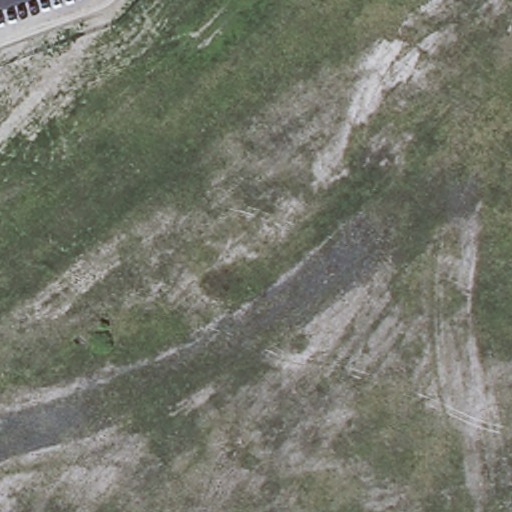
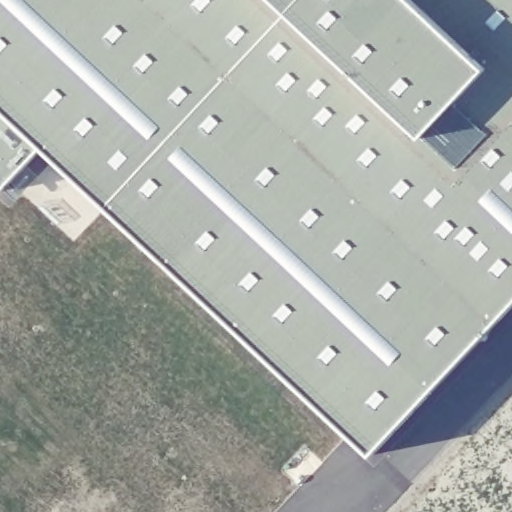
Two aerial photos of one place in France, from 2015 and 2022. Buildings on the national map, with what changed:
new [(512,317),(375,464),(47,153),(5,200),(0,195),(0,0),(512,0),(512,317)]

